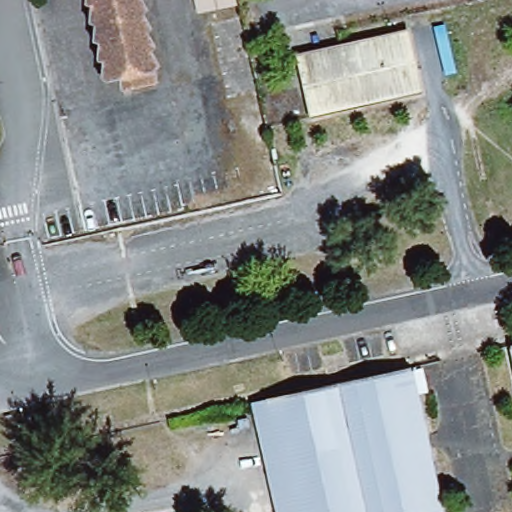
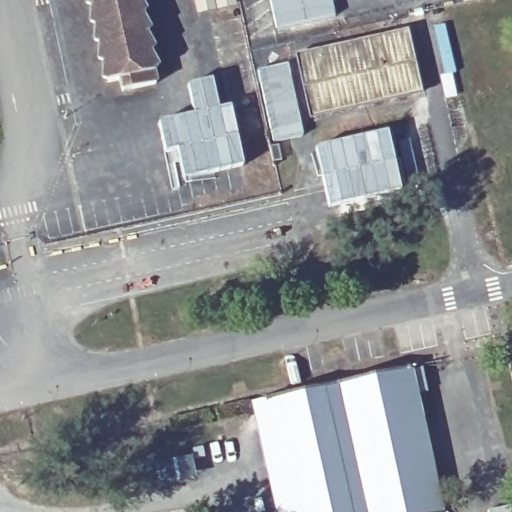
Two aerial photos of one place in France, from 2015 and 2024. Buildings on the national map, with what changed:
unchanged [(161,72),(154,73),(154,85),(121,92),(118,81),(106,83),(90,0),(144,0),(161,72)]
unchanged [(195,0),(237,0),(238,5),(199,16),(195,0)]
new [(337,15),(276,29),(269,0),(333,0),(337,15)]
unchanged [(312,117),(297,55),(411,30),(423,93),(312,117)]
new [(288,62),(304,135),(272,142),(256,68),(288,62)]
new [(192,113),(187,84),(213,78),(219,108),(232,105),(245,166),(183,180),(175,149),(165,152),(158,121),(192,113)]
new [(389,130),(403,191),(327,207),(313,147),(389,130)]
unchanged [(512,348),(512,371),(508,349),(512,348)]
unchanged [(414,370),(441,512),(274,512),(251,404),(414,370)]
new [(512,512),(487,512),(487,510),(512,505),(512,512)]

